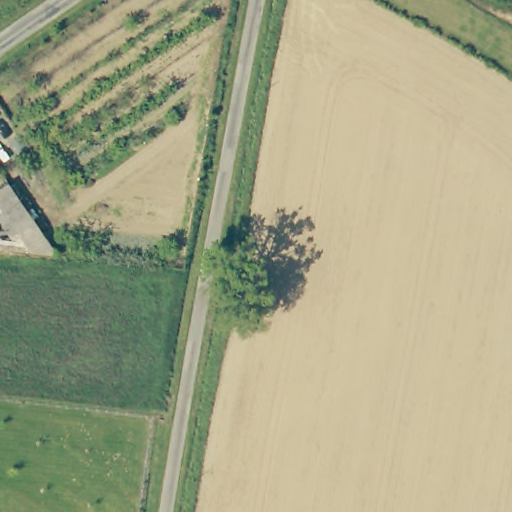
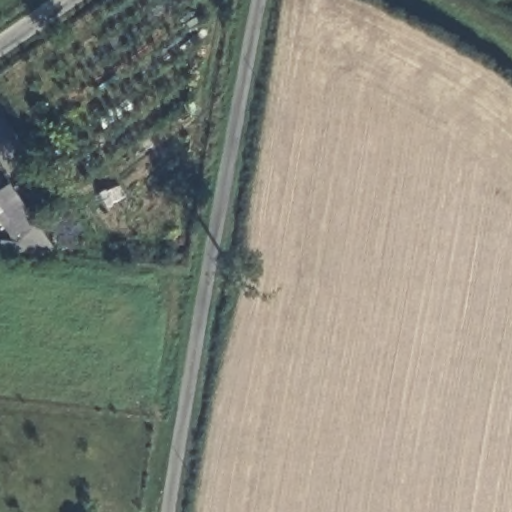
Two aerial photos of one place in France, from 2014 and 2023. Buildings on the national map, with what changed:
unchanged [(56,251),(59,255),(21,251),(0,222),(0,188),(9,182),(56,251)]

